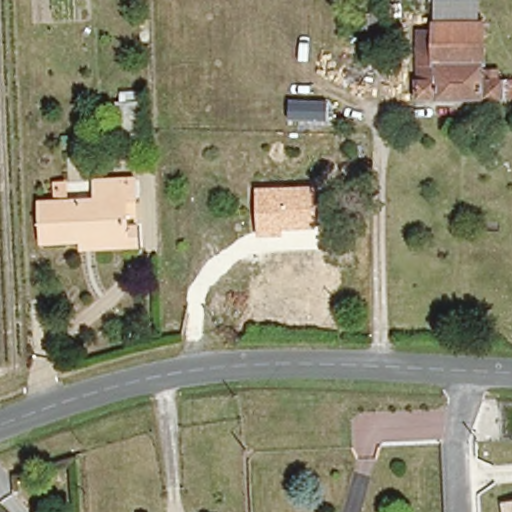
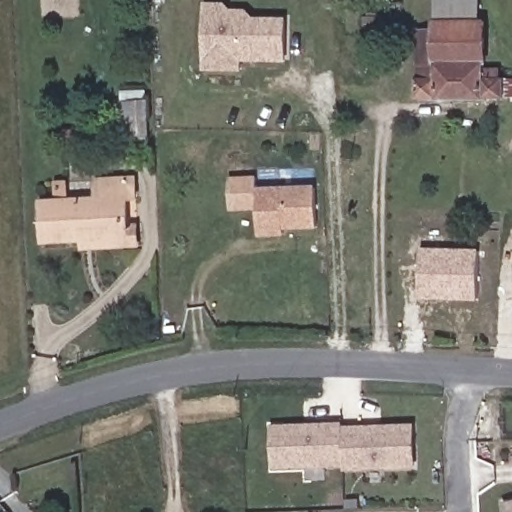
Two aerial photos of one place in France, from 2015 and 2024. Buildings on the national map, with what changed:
unchanged [(507,73),(507,94),(420,93),(420,72),(422,72),(423,21),(438,21),(438,11),(444,11),(444,0),(485,0),(485,12),(485,23),(500,23),(499,59),(501,59),(500,73),(507,73)]
unchanged [(405,27),(393,27),(394,1),(406,1),(405,27)]
new [(237,69),(201,68),(202,18),(202,4),(220,4),(228,10),(243,11),(251,19),(283,19),(282,59),(250,59),(237,59),(237,69)]
unchanged [(390,16),(390,28),(366,27),(366,16),(390,16)]
unchanged [(146,126),(121,128),(119,90),(143,88),(146,126)]
unchanged [(139,244),(83,246),(83,237),(77,237),(75,197),(99,196),(98,178),(137,176),(138,199),(127,200),(128,222),(138,222),(139,244)]
unchanged [(285,230),(285,235),(259,237),(256,187),(316,185),(317,228),(285,230)]
unchanged [(77,237),(45,238),(43,198),(75,197),(77,237)]
new [(420,300),(421,248),(480,249),(479,300),(420,300)]
demolished [(331,275),(331,315),(272,315),(272,274),(331,275)]
new [(339,424),(339,428),(409,426),(410,466),(340,468),(340,464),(270,466),(269,426),(339,424)]
unchanged [(504,502),(512,501),(512,512),(506,512),(504,502)]

